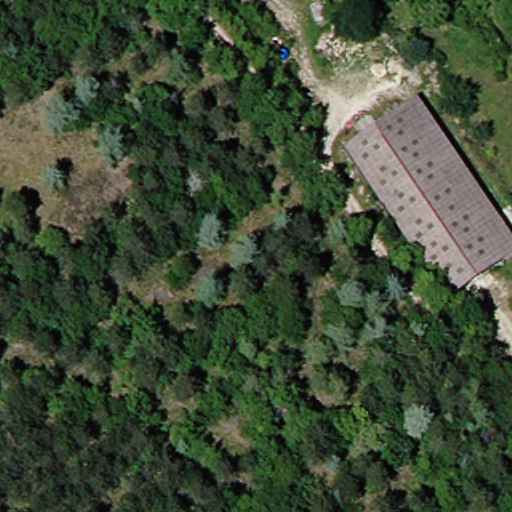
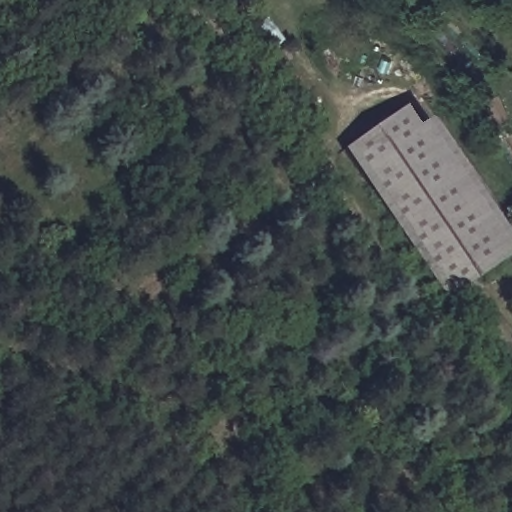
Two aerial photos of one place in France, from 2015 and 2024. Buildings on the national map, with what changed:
unchanged [(444,298),(341,148),(417,97),(512,236),(512,251),(444,298)]

